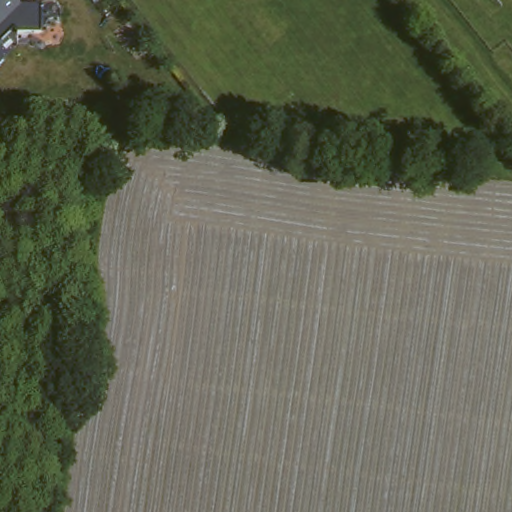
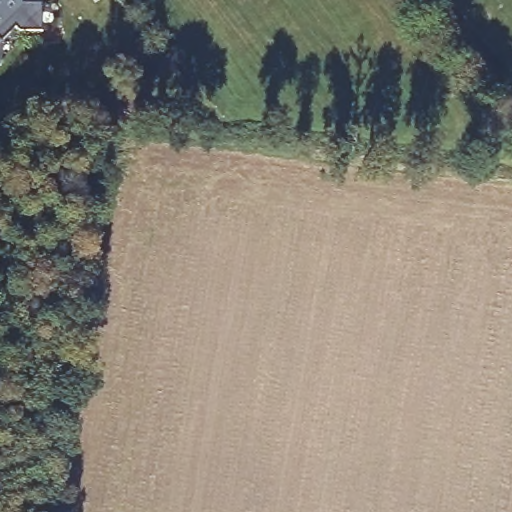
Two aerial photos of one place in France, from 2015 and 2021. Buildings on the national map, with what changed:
unchanged [(0,23),(0,0),(7,0),(18,11),(6,23),(0,23)]

